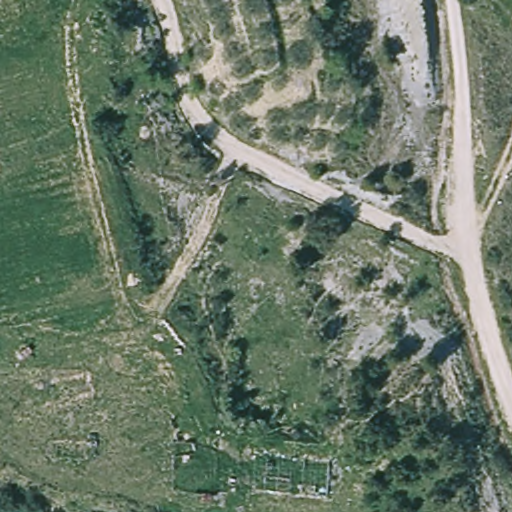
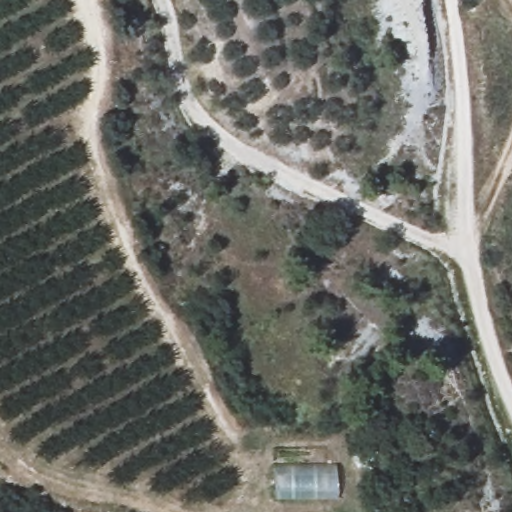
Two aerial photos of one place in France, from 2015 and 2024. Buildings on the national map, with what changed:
demolished [(326,492),(251,485),(253,452),(331,461),(326,492)]
new [(274,497),(275,464),(337,465),(338,499),(274,497)]

